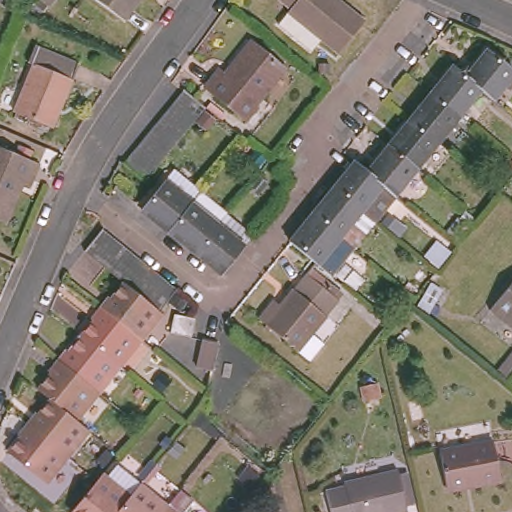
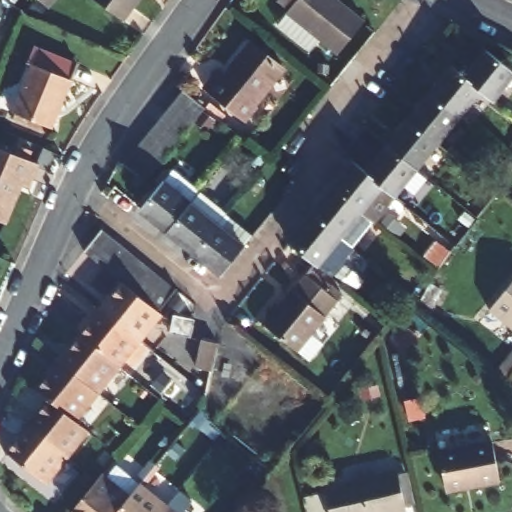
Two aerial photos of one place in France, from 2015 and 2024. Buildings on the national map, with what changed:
unchanged [(123,18),(100,0),(137,0),(123,18)]
unchanged [(335,55),(317,39),(307,50),(275,24),(290,7),(282,0),(337,0),(362,21),(335,55)]
unchanged [(252,103),(256,106),(244,121),(201,87),(215,71),(221,76),(249,41),(279,67),(260,90),(262,92),(252,103)]
unchanged [(482,87),(465,74),(487,47),(512,68),(512,73),(494,96),(482,87)]
unchanged [(70,78),(51,127),(12,112),(32,63),(70,78)]
unchanged [(482,87),(460,113),(431,91),(453,64),(462,72),(465,74),(482,87)]
unchanged [(137,142),(144,134),(145,132),(154,122),(162,112),(170,101),(180,89),(202,107),(193,118),(184,129),(175,140),(167,150),(159,159),(150,170),(142,180),(121,163),(123,160),(129,153),(137,142)]
unchanged [(437,140),(409,117),(431,91),(460,113),(437,140)]
unchanged [(437,140),(417,165),(388,142),(409,117),(437,140)]
unchanged [(417,165),(394,192),(365,169),(388,142),(417,165)]
unchanged [(30,187),(24,185),(7,225),(0,222),(0,151),(39,168),(30,187)]
unchanged [(372,220),(358,208),(330,186),(345,169),(352,159),(365,169),(394,192),(372,220)]
unchanged [(164,232),(152,222),(137,210),(160,182),(187,203),(164,232)]
unchanged [(358,208),(336,235),(309,212),(330,186),(358,208)]
unchanged [(190,253),(164,232),(187,203),(214,225),(190,253)]
unchanged [(314,262),(286,239),(305,217),(309,212),(336,235),(314,262)]
unchanged [(214,225),(222,214),(250,236),(237,252),(217,276),(197,258),(190,253),(214,225)]
unchanged [(115,276),(106,270),(97,262),(92,258),(87,254),(75,246),(92,226),(102,234),(106,237),(112,242),(122,250),(134,258),(144,266),(154,275),(155,276),(165,283),(163,285),(157,292),(149,302),(155,308),(134,335),(92,302),(102,291),(104,292),(117,277),(115,276)]
unchanged [(335,302),(293,353),(256,323),(266,312),(271,306),(275,310),(303,275),(335,302)]
unchanged [(507,323),(509,321),(495,309),(512,287),(512,327),(507,323)]
unchanged [(134,335),(112,362),(73,330),(87,313),(85,312),(92,302),(134,335)]
unchanged [(161,324),(164,310),(165,307),(185,311),(183,322),(182,328),(161,324)]
unchanged [(90,387),(49,354),(57,343),(60,346),(73,330),(112,362),(90,387)]
unchanged [(200,341),(216,343),(210,376),(194,373),(200,341)]
unchanged [(90,387),(67,415),(42,395),(30,383),(43,367),(40,365),(49,354),(90,387)]
unchanged [(67,415),(82,426),(60,452),(19,418),(29,407),(31,408),(42,395),(67,415)]
unchanged [(39,477),(0,447),(13,431),(10,428),(19,418),(60,452),(39,477)]
unchanged [(499,481),(474,486),(472,482),(445,487),(438,451),(491,441),(499,481)]
unchanged [(127,490),(109,512),(73,512),(68,507),(73,501),(85,486),(94,475),(100,467),(127,490)]
unchanged [(344,485),(344,482),(398,470),(407,512),(405,512),(330,512),(325,489),(344,485)]
unchanged [(137,477),(164,499),(153,512),(109,512),(127,490),(137,477)]
unchanged [(153,512),(164,499),(180,512),(153,512)]

